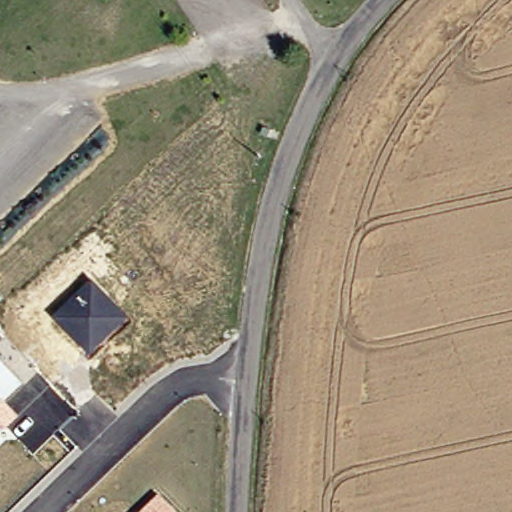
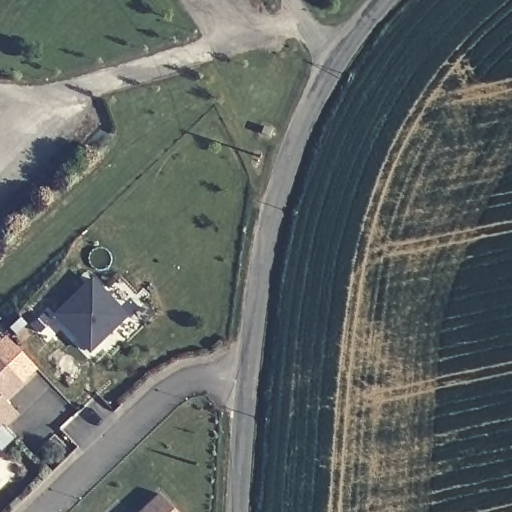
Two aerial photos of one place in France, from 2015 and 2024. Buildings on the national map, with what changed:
unchanged [(89,354),(54,316),(92,278),(127,315),(89,354)]
new [(5,401),(0,395),(0,342),(7,336),(39,369),(5,401)]
unchanged [(19,415),(7,427),(15,435),(0,448),(0,395),(19,415)]
unchanged [(158,493),(176,512),(139,512),(158,493)]

